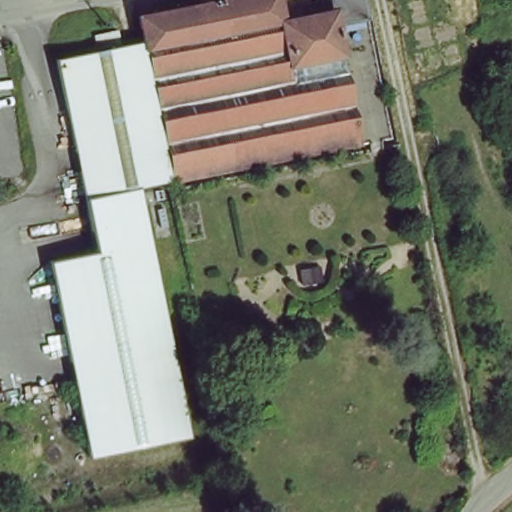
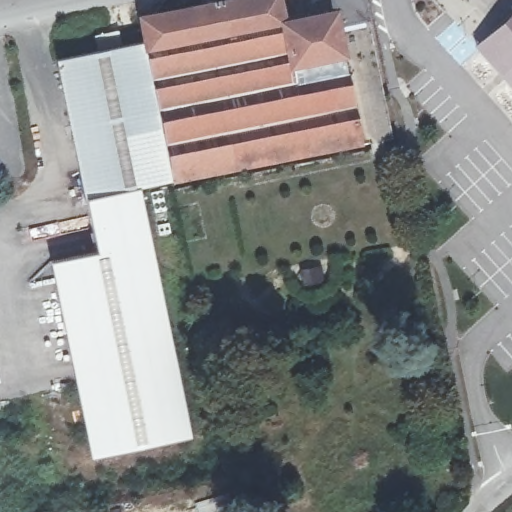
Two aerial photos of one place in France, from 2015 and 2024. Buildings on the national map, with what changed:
unchanged [(134,27),(261,0),(271,0),(278,28),(324,20),(320,0),(356,0),(383,140),(163,187),(160,176),(146,117),(141,95),(131,50),(137,49),(134,27)]
new [(512,9),(512,89),(473,46),(512,9)]
unchanged [(105,15),(108,27),(91,31),(88,31),(86,19),(105,15)]
unchanged [(92,466),(49,270),(94,260),(84,216),(82,206),(52,70),(131,50),(141,95),(146,117),(160,176),(163,187),(136,194),(138,206),(191,443),(92,466)]

